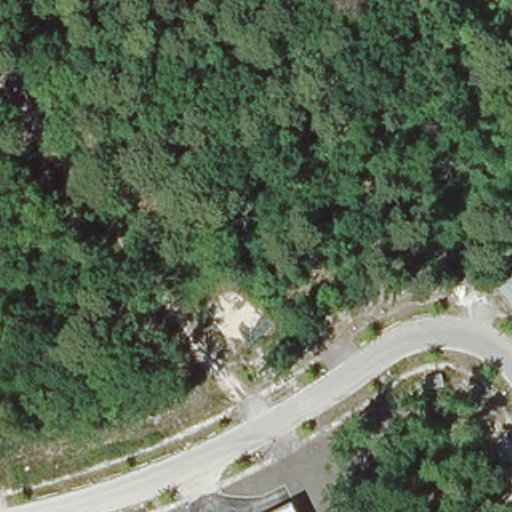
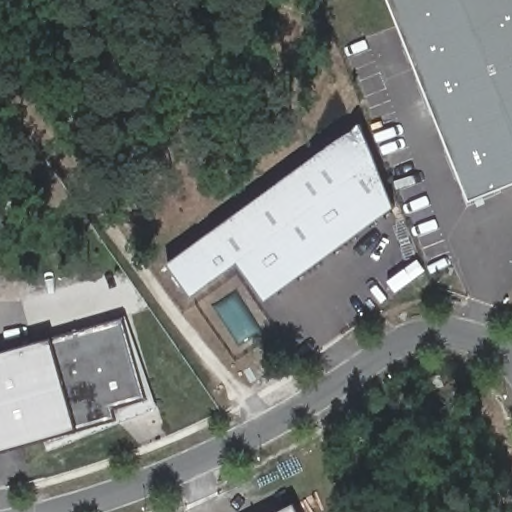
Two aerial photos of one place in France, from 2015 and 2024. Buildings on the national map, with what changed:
new [(469,202),(388,0),(512,0),(512,185),(469,202)]
new [(396,207),(266,301),(238,263),(192,297),(167,264),(362,121),(396,207)]
new [(157,408),(49,449),(46,438),(0,452),(0,353),(51,339),(126,318),(157,408)]
unchanged [(292,505),(296,512),(279,512),(292,505)]

